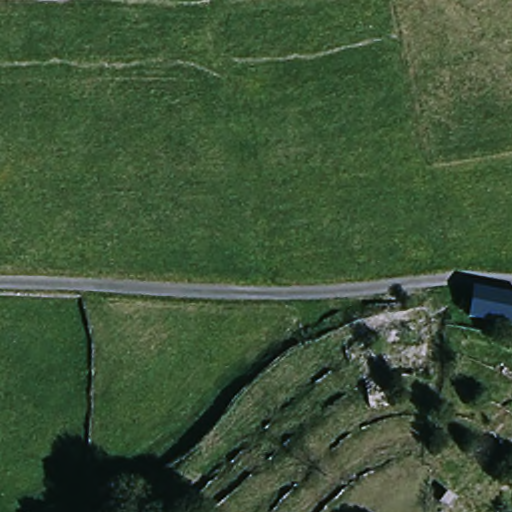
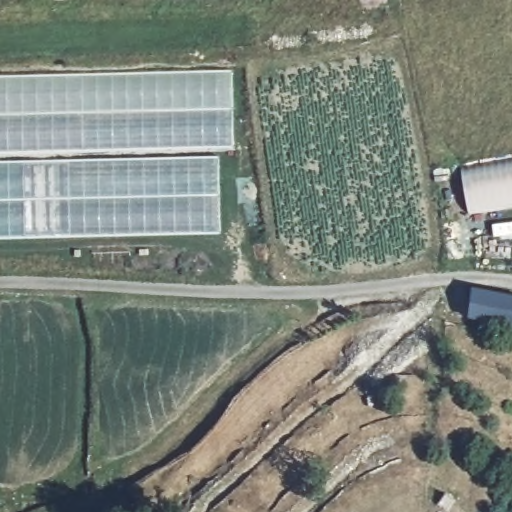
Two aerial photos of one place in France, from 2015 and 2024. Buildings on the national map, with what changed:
new [(0,151),(0,76),(233,70),(234,146),(0,151)]
new [(0,238),(0,161),(220,156),(222,233),(0,238)]
new [(461,165),(512,157),(512,207),(469,214),(461,165)]
unchanged [(476,283),(512,290),(512,323),(472,314),(476,283)]

